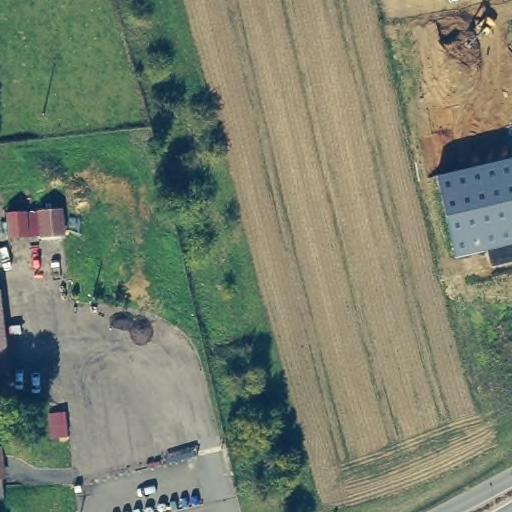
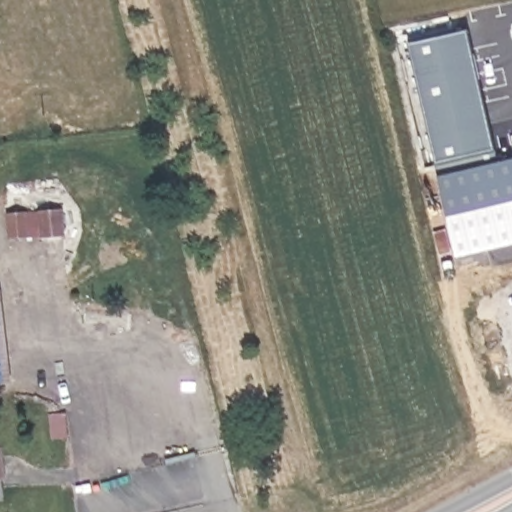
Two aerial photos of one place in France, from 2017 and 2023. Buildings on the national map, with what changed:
new [(436,164),(409,43),(466,30),(494,151),(436,164)]
unchanged [(455,257),(437,176),(512,158),(512,244),(455,257)]
unchanged [(6,363),(0,364),(0,316),(6,363)]

